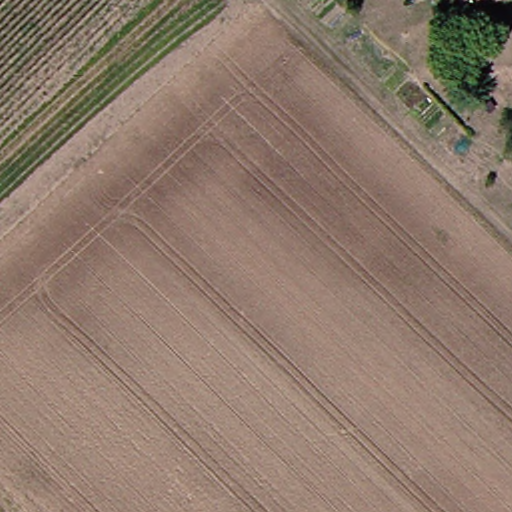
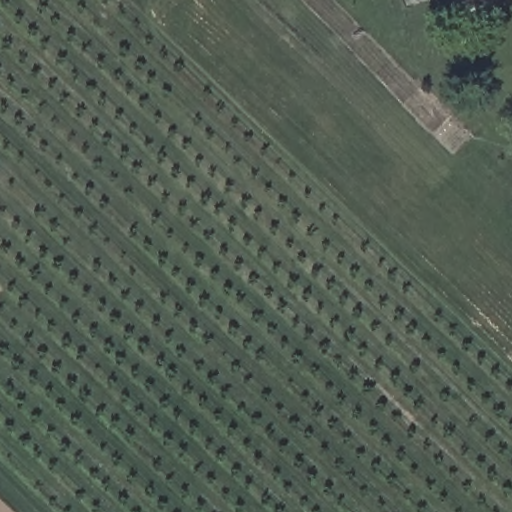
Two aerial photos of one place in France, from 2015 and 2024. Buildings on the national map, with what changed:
unchanged [(471,0),(502,0),(476,11),(471,0)]

